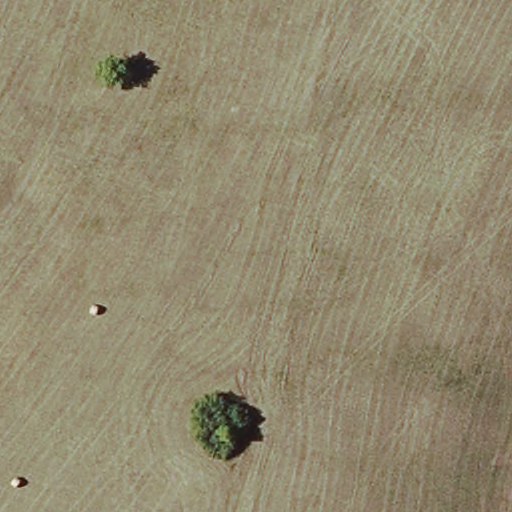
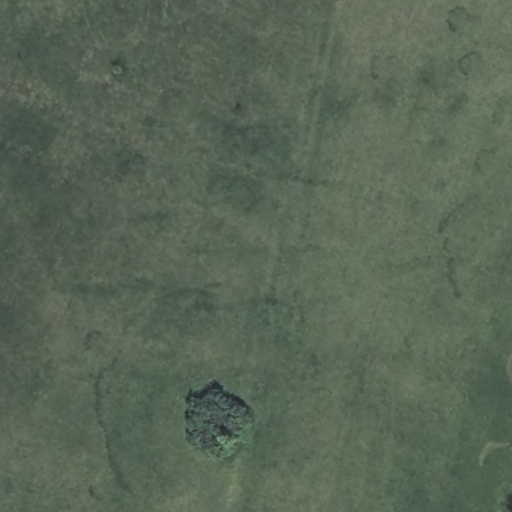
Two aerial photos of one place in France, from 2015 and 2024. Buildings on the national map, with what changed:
unchanged [(207,428),(211,414),(230,420),(226,432),(207,428)]

